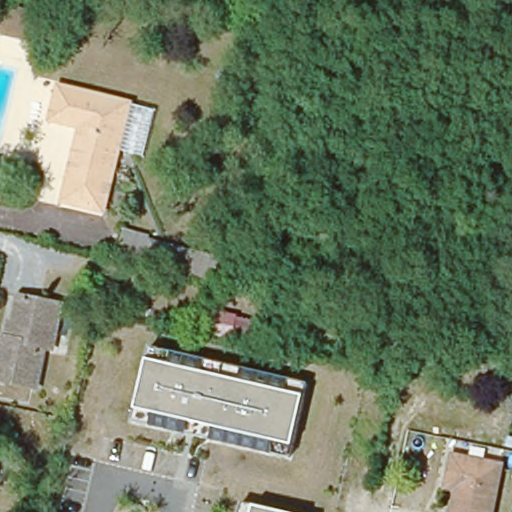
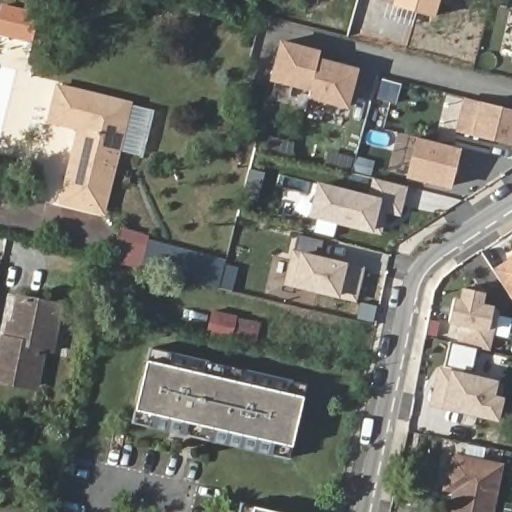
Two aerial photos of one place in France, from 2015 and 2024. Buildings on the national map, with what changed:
new [(439,0),(433,18),(392,5),(394,0),(439,0)]
unchanged [(31,46),(0,37),(0,10),(2,3),(40,14),(31,46)]
demolished [(512,20),(512,55),(492,51),(500,18),(512,20)]
new [(286,42),(324,52),(322,59),(361,69),(349,110),(312,99),(313,93),(275,82),(286,42)]
unchanged [(61,205),(66,189),(68,179),(80,133),(50,125),(60,88),(132,107),(108,199),(102,217),(85,212),(61,205)]
new [(470,100),(512,111),(512,147),(461,134),(470,100)]
new [(423,140),(465,151),(456,189),(413,179),(423,140)]
new [(322,189),(373,202),(378,181),(409,189),(402,217),(388,214),(382,235),(314,218),(322,189)]
unchanged [(122,234),(228,259),(222,285),(116,260),(122,234)]
new [(296,253),(364,269),(357,301),(288,284),(296,253)]
new [(511,256),(512,255),(512,258),(511,256)]
new [(512,261),(512,295),(497,270),(512,261)]
new [(458,300),(466,302),(468,289),(487,294),(485,306),(498,309),(501,314),(492,351),(458,343),(463,324),(453,322),(458,300)]
unchanged [(50,305),(49,308),(40,348),(32,346),(22,383),(0,377),(0,337),(9,300),(10,295),(50,305)]
unchanged [(254,351),(205,342),(211,308),(261,317),(254,351)]
new [(452,345),(480,351),(474,376),(447,369),(452,345)]
unchanged [(290,457),(134,422),(151,346),(307,384),(290,457)]
new [(442,387),(445,388),(448,374),(500,386),(496,399),(506,402),(501,421),(438,406),(442,387)]
unchanged [(453,485),(445,484),(449,460),(502,471),(494,512),(448,512),(453,485)]
unchanged [(243,503),(282,512),(241,512),(243,503)]

